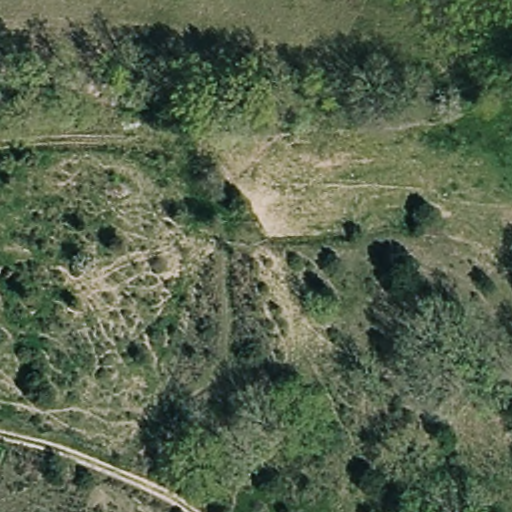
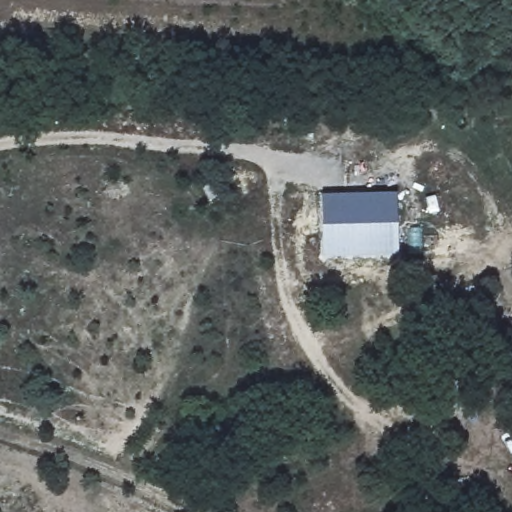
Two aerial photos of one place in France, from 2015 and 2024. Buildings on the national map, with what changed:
new [(398,194),(400,255),(323,258),(322,196),(398,194)]

